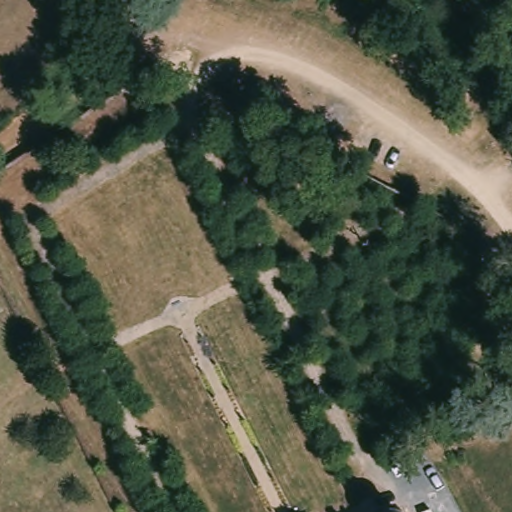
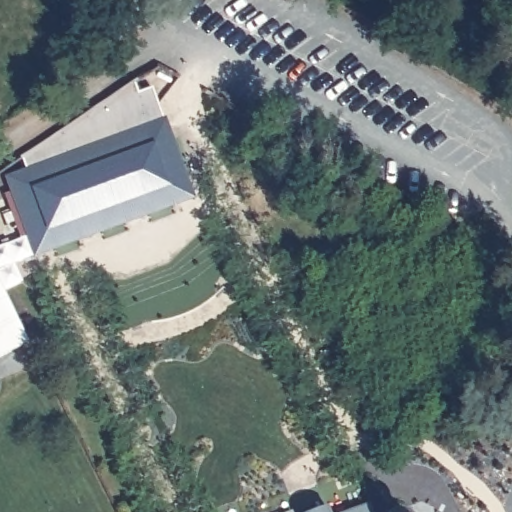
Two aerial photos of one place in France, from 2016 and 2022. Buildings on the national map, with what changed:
new [(29,255),(3,175),(24,167),(20,156),(132,81),(136,94),(150,88),(193,198),(29,255)]
new [(0,282),(26,341),(0,354),(0,282)]
new [(324,504),(328,512),(305,512),(324,504)]
new [(363,505),(365,512),(344,512),(363,505)]

